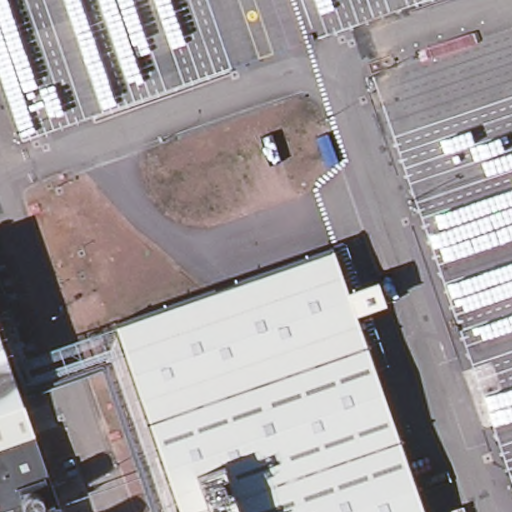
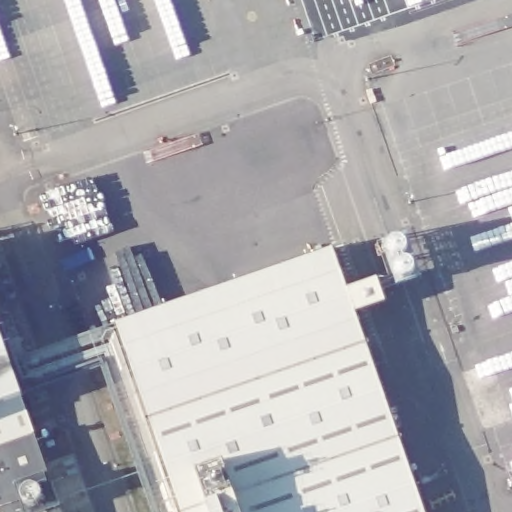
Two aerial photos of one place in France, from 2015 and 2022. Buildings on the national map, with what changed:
unchanged [(424,512),(183,512),(117,323),(333,249),(424,512)]
unchanged [(0,445),(0,335),(34,433),(0,445)]
unchanged [(61,512),(0,512),(0,445),(34,433),(61,512)]

